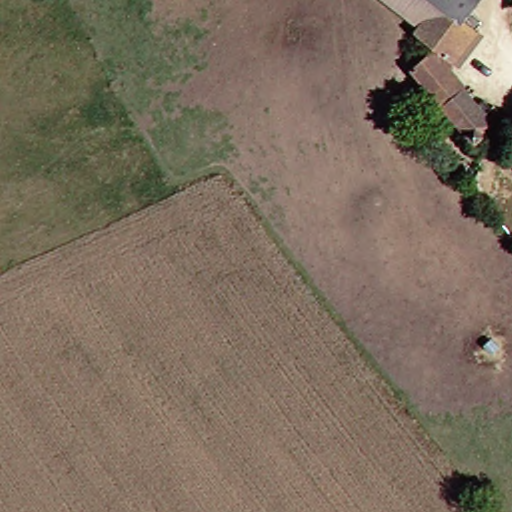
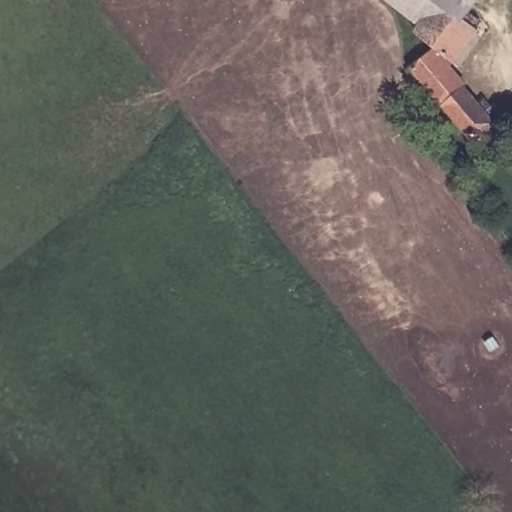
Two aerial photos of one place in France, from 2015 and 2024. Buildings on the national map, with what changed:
unchanged [(442,46),(422,29),(425,26),(392,0),(486,0),(471,21),(488,32),(461,63),(457,67),(493,111),(502,104),(506,111),(498,117),(502,123),(480,144),(415,71),(442,46)]

